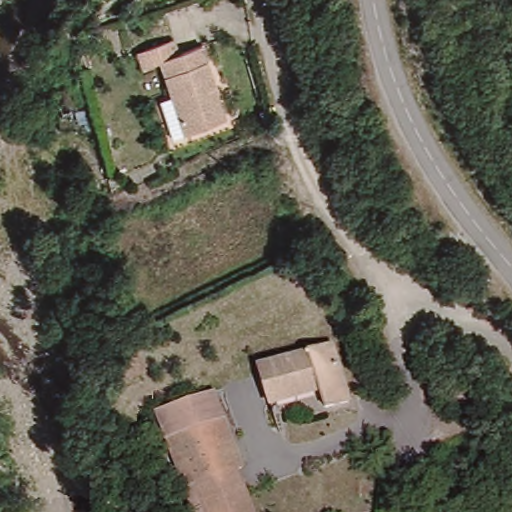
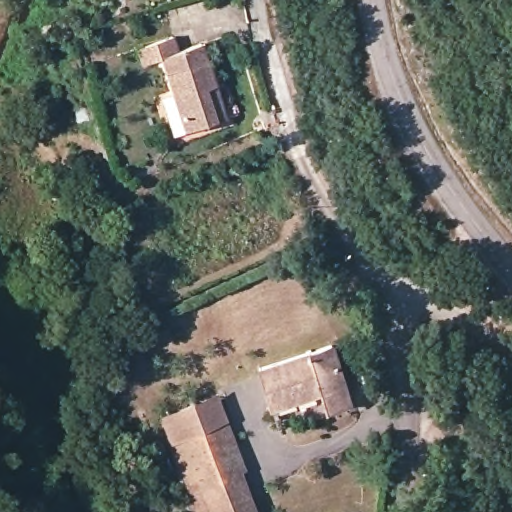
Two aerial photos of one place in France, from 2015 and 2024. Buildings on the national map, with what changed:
unchanged [(159,89),(171,85),(163,59),(144,62),(141,46),(175,39),(178,52),(201,47),(224,120),(185,130),(187,136),(174,140),(159,89)]
unchanged [(347,401),(322,406),(319,387),(272,396),(267,360),(335,346),(347,401)]
unchanged [(165,410),(227,396),(232,422),(171,435),(165,410)]
unchanged [(171,435),(232,422),(242,470),(237,471),(244,512),(190,512),(184,485),(171,435)]

